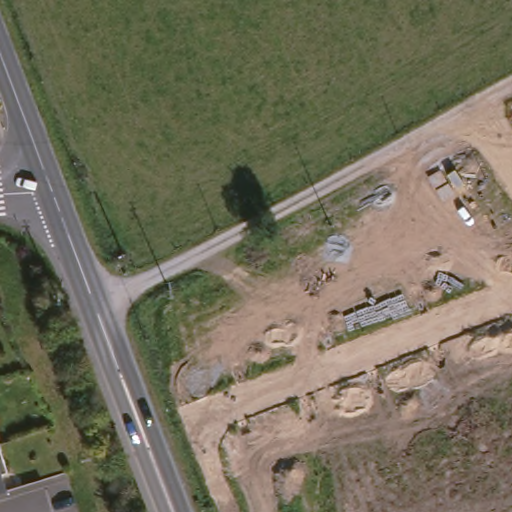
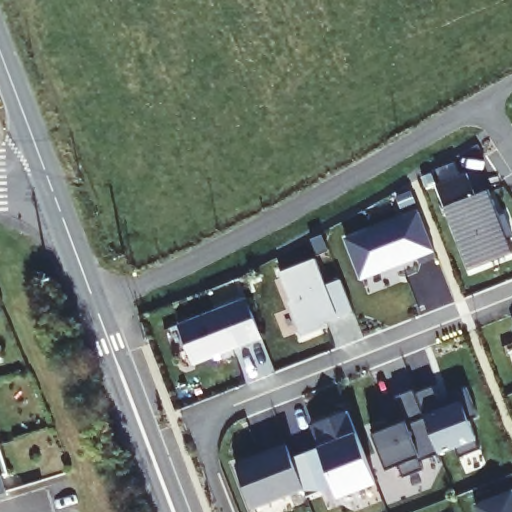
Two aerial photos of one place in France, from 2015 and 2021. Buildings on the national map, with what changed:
new [(488,188),(498,215),(503,213),(507,222),(512,234),(506,236),(512,250),(512,253),(469,270),(435,185),(466,173),(474,194),(488,188)]
new [(434,251),(361,279),(343,236),(416,209),(434,251)]
new [(314,257),(324,284),(340,278),(352,309),(323,320),(320,328),(301,335),(288,301),(290,300),(279,271),(314,257)]
new [(246,298),(261,337),(193,364),(178,324),(246,298)]
new [(439,402),(449,398),(447,393),(466,386),(478,416),(468,420),(480,449),(459,457),(454,446),(438,452),(415,392),(432,385),(439,402)]
new [(403,415),(395,395),(413,388),(415,392),(438,452),(420,460),(423,469),(403,477),(398,465),(386,469),(370,428),(388,421),(403,415)]
new [(291,458),(305,452),(325,445),(316,423),(347,411),(375,481),(338,496),(334,486),(320,491),(306,496),(303,488),(252,508),(236,465),(286,445),(291,458)]
unchanged [(6,476),(1,478),(5,494),(0,495),(0,453),(6,476)]
new [(475,505),(512,491),(512,512),(478,512),(475,505)]

